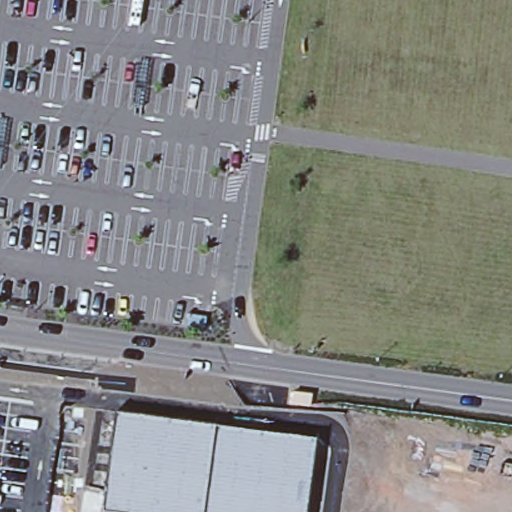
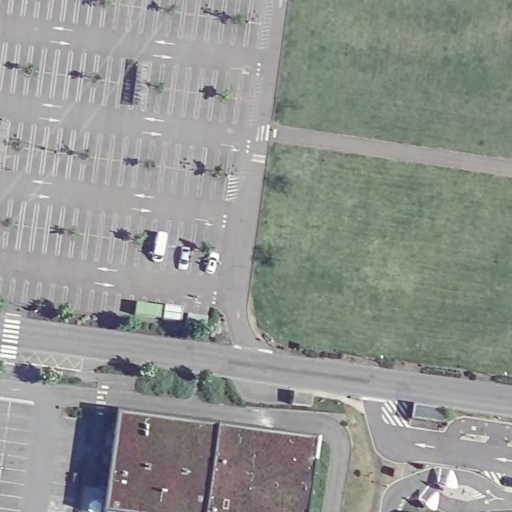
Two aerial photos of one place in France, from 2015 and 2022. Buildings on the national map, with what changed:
unchanged [(315,441),(306,512),(104,512),(118,413),(315,441)]

